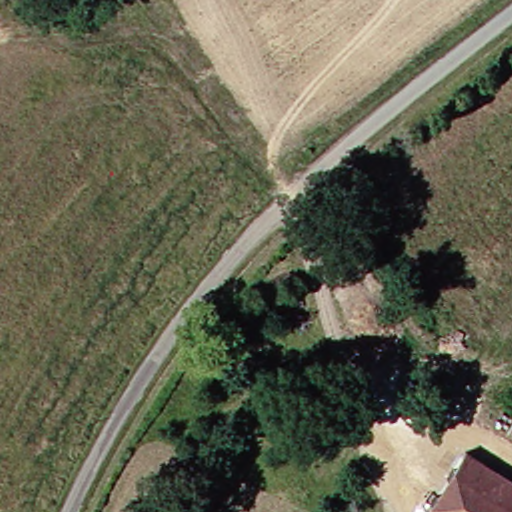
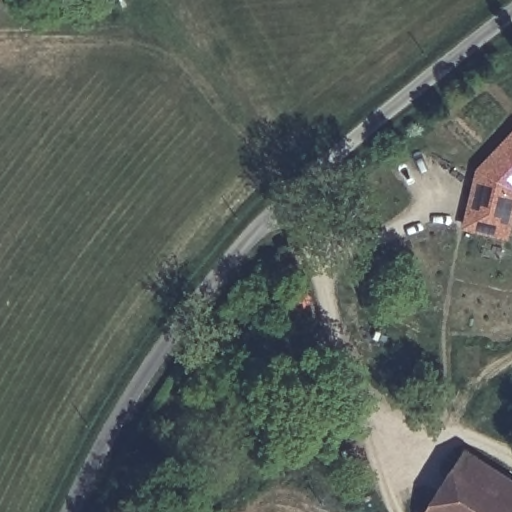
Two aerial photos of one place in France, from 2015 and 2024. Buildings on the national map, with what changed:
new [(480,172),(512,138),(512,215),(507,237),(466,228),(480,172)]
unchanged [(453,451),(512,488),(512,512),(415,512),(453,451)]

